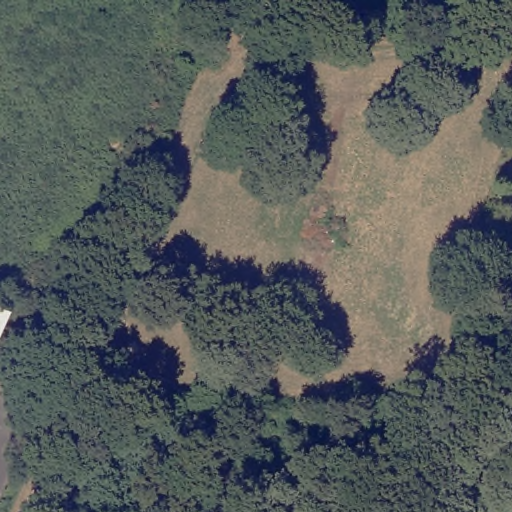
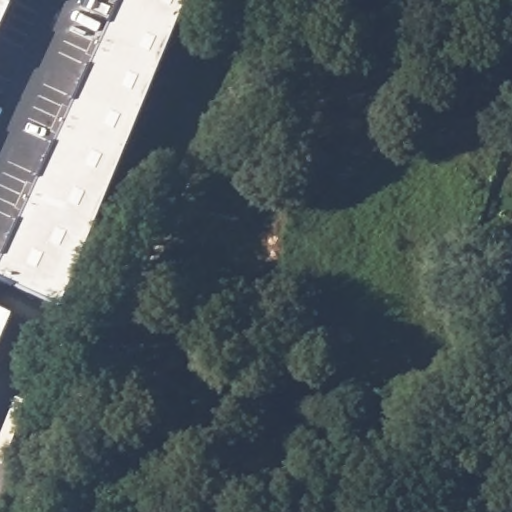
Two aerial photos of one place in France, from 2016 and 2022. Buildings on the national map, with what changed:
new [(9,0),(0,20),(0,0),(9,0)]
new [(185,0),(61,303),(0,277),(0,256),(117,0),(185,0)]
unchanged [(13,310),(0,339),(0,303),(13,310)]

